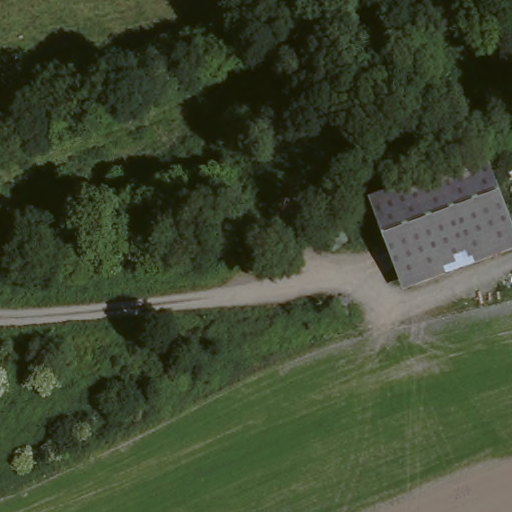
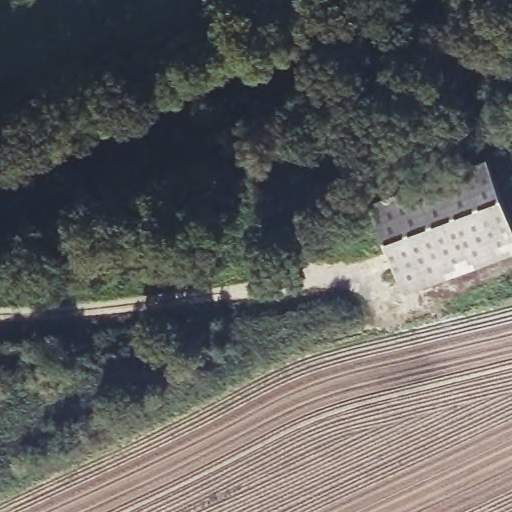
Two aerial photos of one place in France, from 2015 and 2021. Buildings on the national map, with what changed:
unchanged [(493,167),(512,219),(512,242),(401,282),(393,256),(375,210),(493,167)]

